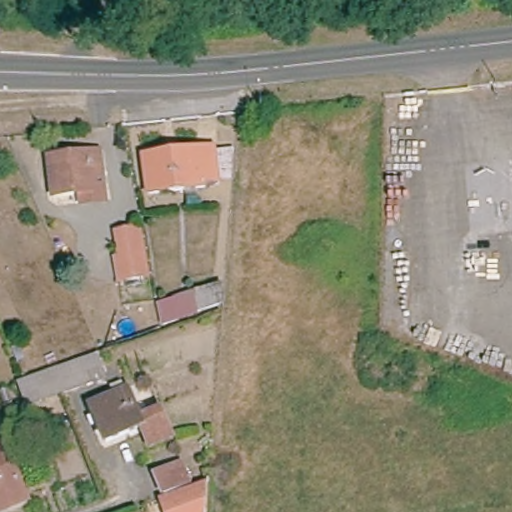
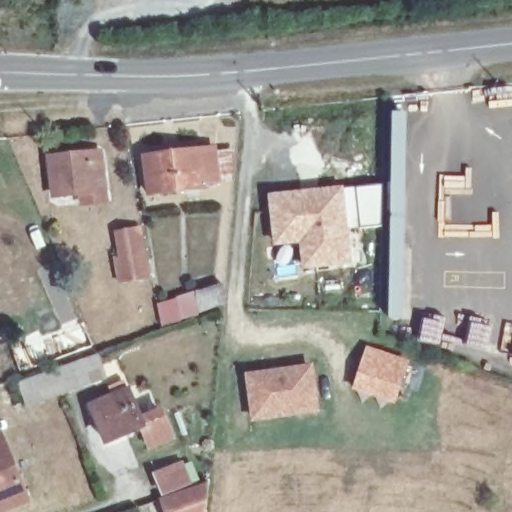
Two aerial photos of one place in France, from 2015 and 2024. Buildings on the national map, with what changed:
new [(391,113),(406,113),(404,272),(406,322),(387,322),(391,113)]
unchanged [(195,150),(196,159),(209,159),(210,178),(199,177),(199,185),(147,186),(142,152),(195,150)]
unchanged [(86,155),(86,163),(100,164),(102,185),(52,187),(48,155),(86,155)]
new [(390,184),(389,225),(349,230),(345,189),(390,184)]
new [(345,186),(352,264),(302,270),(300,243),(274,245),(268,195),(345,186)]
unchanged [(111,284),(107,259),(117,258),(113,229),(135,226),(145,282),(111,284)]
unchanged [(155,329),(146,307),(219,281),(223,304),(155,329)]
new [(366,346),(411,361),(395,406),(351,391),(366,346)]
unchanged [(47,369),(98,351),(100,351),(109,378),(23,409),(13,381),(47,369)]
new [(320,413),(251,423),(245,374),(312,366),(320,413)]
unchanged [(88,399),(124,386),(132,412),(140,429),(105,443),(100,434),(88,399)]
unchanged [(132,412),(158,402),(162,412),(174,446),(149,456),(140,429),(132,412)]
unchanged [(8,472),(0,475),(0,452),(8,472)]
unchanged [(151,478),(180,468),(190,493),(159,503),(151,478)]
unchanged [(8,472),(20,504),(0,511),(0,475),(8,472)]
unchanged [(159,504),(204,490),(202,512),(161,512),(159,504)]

